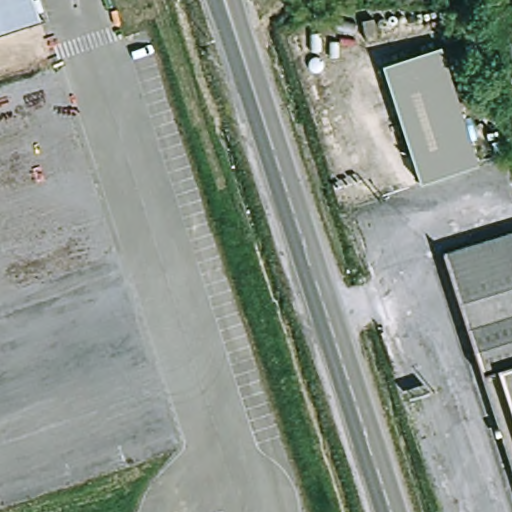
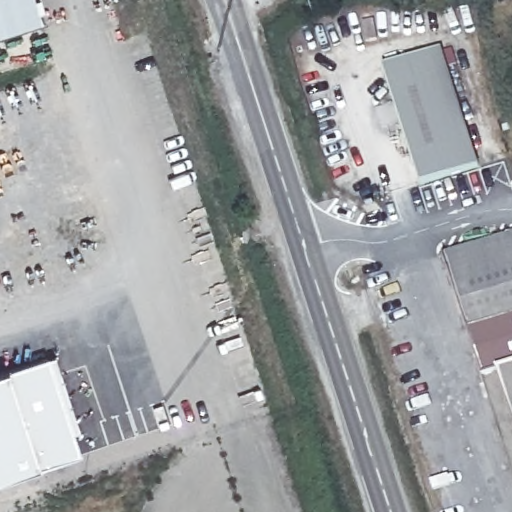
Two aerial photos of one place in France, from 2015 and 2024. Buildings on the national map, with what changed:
unchanged [(0,37),(0,0),(37,0),(45,22),(0,37)]
unchanged [(380,39),(369,42),(363,23),(374,19),(380,39)]
unchanged [(480,167),(421,185),(384,67),(442,49),(480,167)]
unchanged [(444,255),(512,234),(512,471),(444,255)]
new [(46,361),(55,359),(78,432),(73,434),(80,455),(36,469),(0,482),(0,375),(7,373),(46,361)]

